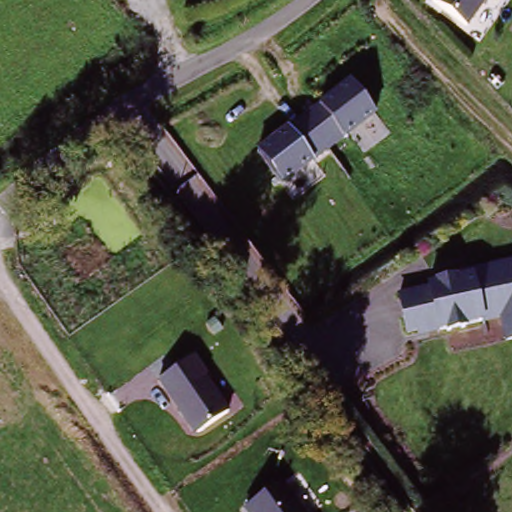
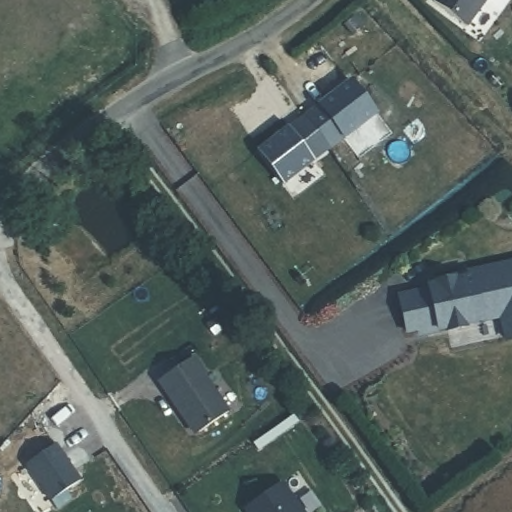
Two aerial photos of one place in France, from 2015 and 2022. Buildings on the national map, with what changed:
unchanged [(435,1),(437,0),(489,0),(472,26),(435,1)]
unchanged [(382,118),(287,186),(262,150),(357,77),(382,118)]
unchanged [(505,324),(440,338),(437,332),(407,338),(397,295),(427,289),(427,280),(512,264),(512,345),(512,346),(505,324)]
unchanged [(155,384),(193,357),(227,412),(192,438),(155,384)]
new [(55,443),(80,480),(50,502),(25,465),(55,443)]
unchanged [(241,510),(280,481),(303,512),(243,512),(241,510)]

